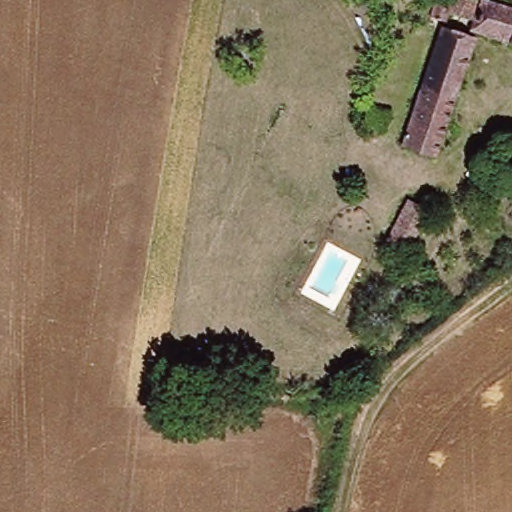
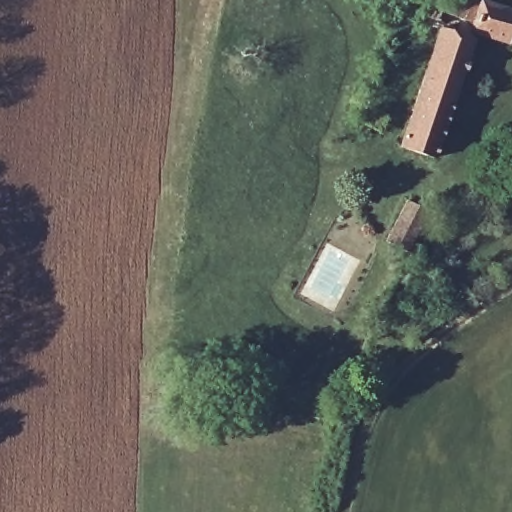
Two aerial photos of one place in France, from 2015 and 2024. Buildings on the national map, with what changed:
unchanged [(449,11),(453,0),(473,0),(512,11),(512,43),(476,31),(436,158),(404,147),(442,34),(428,30),(434,7),(449,11)]
unchanged [(386,246),(406,209),(424,220),(404,256),(386,246)]

